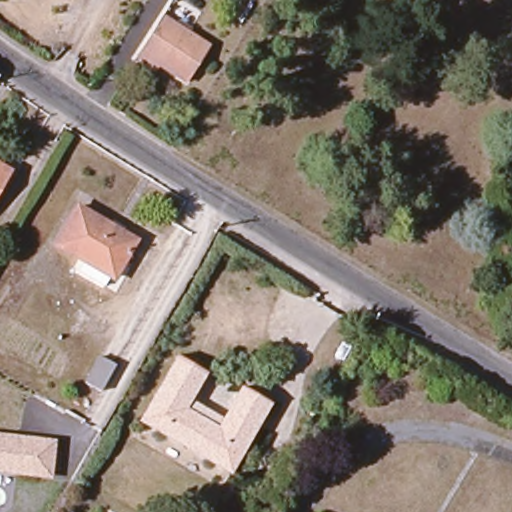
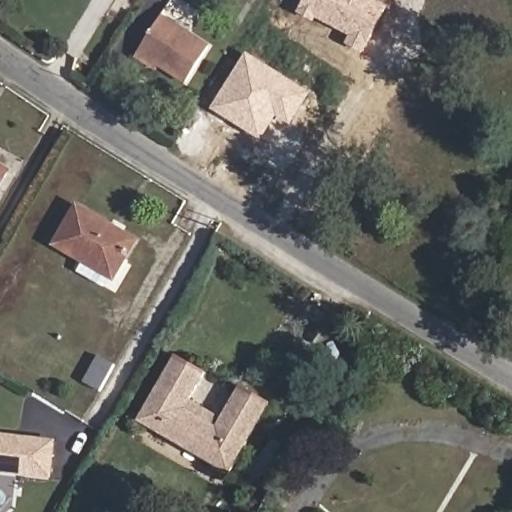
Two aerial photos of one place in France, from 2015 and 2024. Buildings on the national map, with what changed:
new [(362,53),(344,45),(348,36),(316,18),(313,22),(295,12),(302,0),(376,0),(387,6),(362,53)]
unchanged [(138,58),(159,22),(205,48),(208,50),(186,87),(182,84),(138,58)]
new [(246,51),(311,92),(291,125),(276,117),(261,141),(210,109),(246,51)]
unchanged [(0,187),(0,172),(6,175),(0,187)]
unchanged [(135,243),(113,283),(54,246),(76,208),(135,243)]
unchanged [(96,357),(115,367),(99,397),(79,386),(96,357)]
unchanged [(174,361),(202,376),(185,406),(217,426),(240,386),(269,405),(228,475),(140,424),(174,361)]
unchanged [(52,478),(0,473),(0,432),(57,438),(52,478)]

